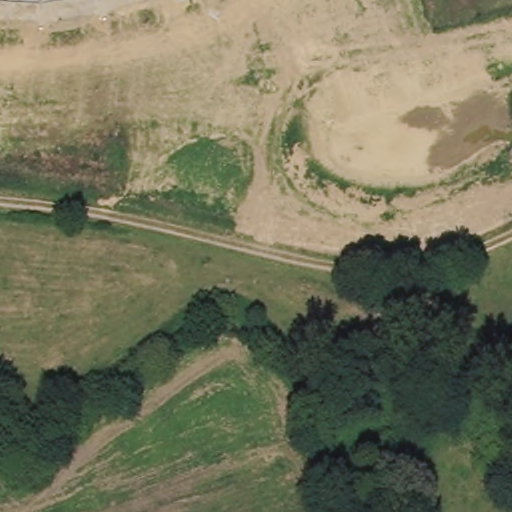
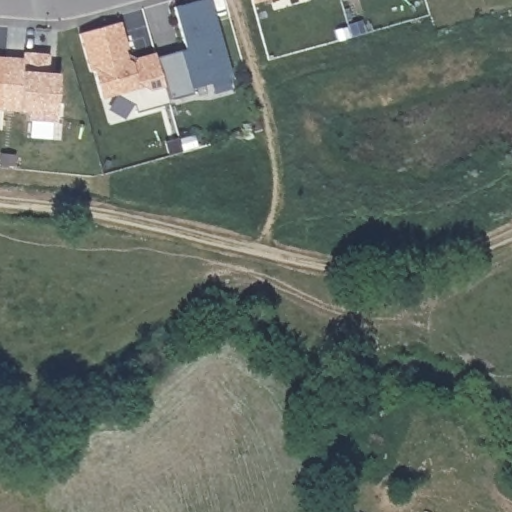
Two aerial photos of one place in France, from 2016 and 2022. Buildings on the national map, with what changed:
new [(253,2),(252,0),(262,0),(253,2)]
new [(186,49),(176,14),(211,4),(233,80),(209,87),(210,91),(194,95),(195,101),(171,107),(156,57),(186,49)]
new [(130,55),(128,56),(129,59),(136,57),(155,52),(156,57),(171,107),(171,110),(139,120),(136,112),(118,101),(104,105),(96,77),(92,78),(82,40),(123,29),(130,55)]
new [(24,59),(25,52),(50,55),(48,73),(59,74),(59,82),(55,122),(29,120),(30,112),(2,110),(6,57),(24,59)]
new [(2,110),(0,110),(0,57),(6,57),(2,110)]

